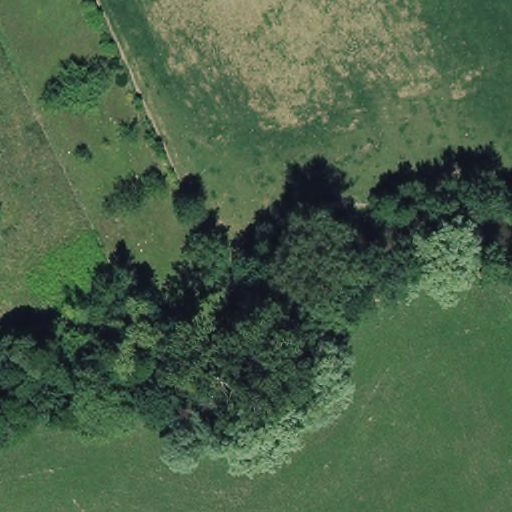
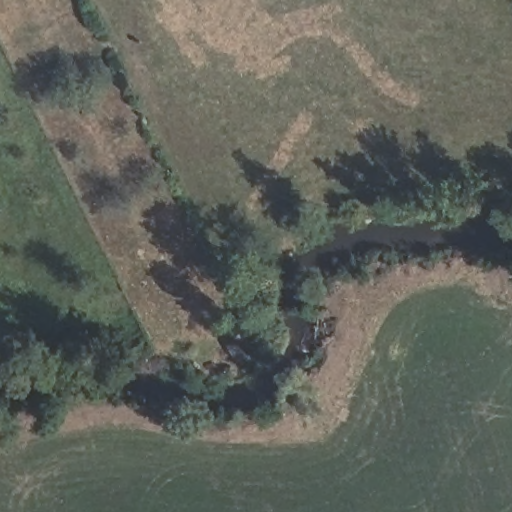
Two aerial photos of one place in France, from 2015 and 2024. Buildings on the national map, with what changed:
[]

